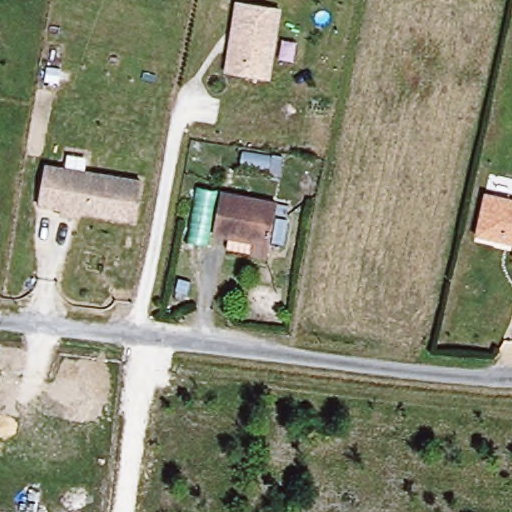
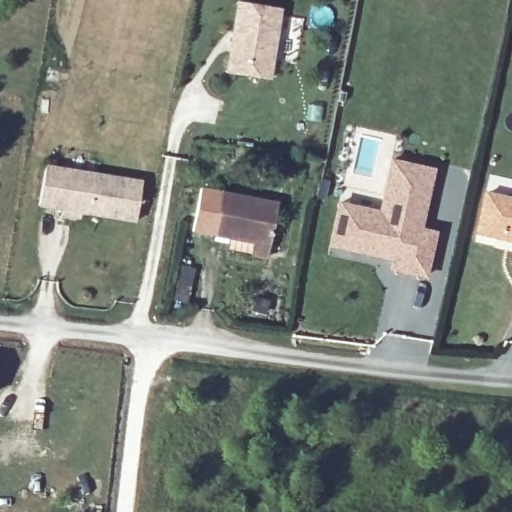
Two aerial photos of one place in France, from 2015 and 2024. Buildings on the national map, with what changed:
unchanged [(276,7),(265,79),(224,72),(234,1),(276,7)]
new [(357,207),(380,212),(391,160),(433,170),(420,229),(436,232),(427,275),(392,268),(396,253),(386,251),(385,256),(348,249),(330,245),(339,204),(357,207)]
unchanged [(136,182),(130,222),(33,207),(34,199),(39,167),(136,182)]
unchanged [(253,251),(229,247),(231,235),(215,233),(223,191),(279,200),(272,242),(269,255),(253,251)]
unchanged [(500,239),(499,245),(472,240),(481,196),(512,203),(512,241),(500,239)]
demolished [(9,445),(0,443),(0,407),(14,408),(9,445)]

